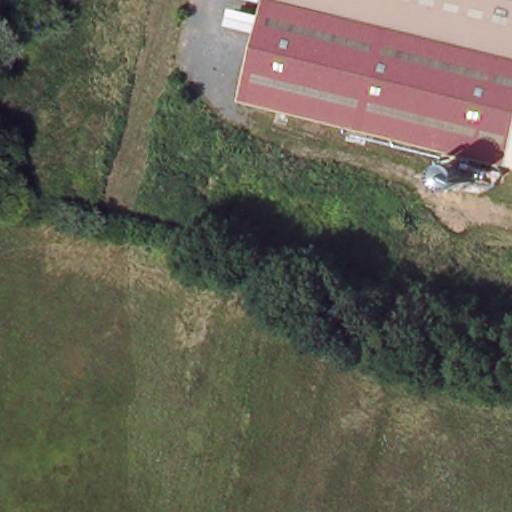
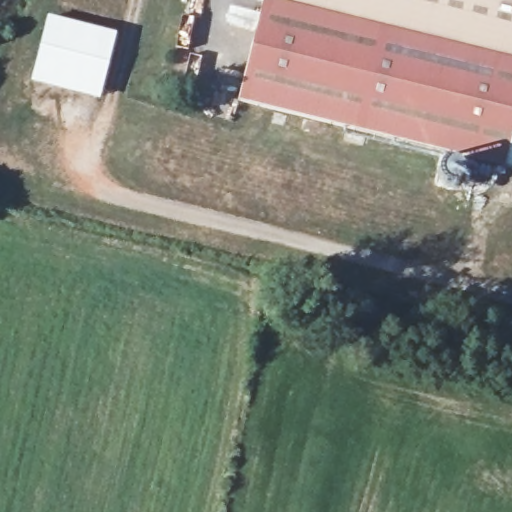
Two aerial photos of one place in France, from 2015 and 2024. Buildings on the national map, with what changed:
unchanged [(512,109),(497,161),(237,91),(261,0),(316,0),(512,53),(512,109)]
unchanged [(512,53),(316,0),(512,0),(512,53)]
new [(58,84),(42,80),(55,29),(57,29),(60,17),(121,34),(117,46),(120,46),(111,80),(106,97),(58,84)]
unchanged [(512,109),(512,166),(497,161),(512,109)]

